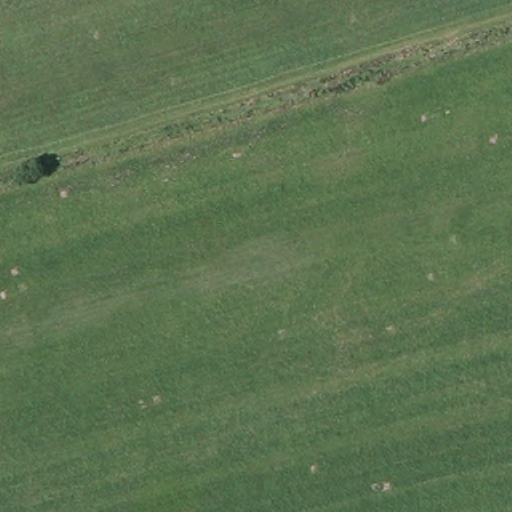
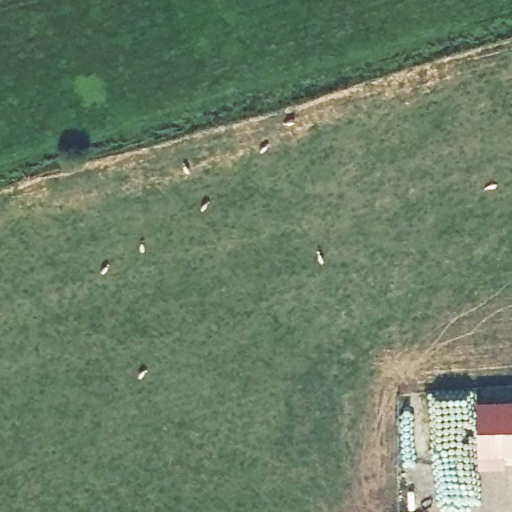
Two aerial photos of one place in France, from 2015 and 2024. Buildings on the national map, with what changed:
new [(505,452),(505,466),(479,467),(477,400),(512,399),(512,451),(505,452)]

